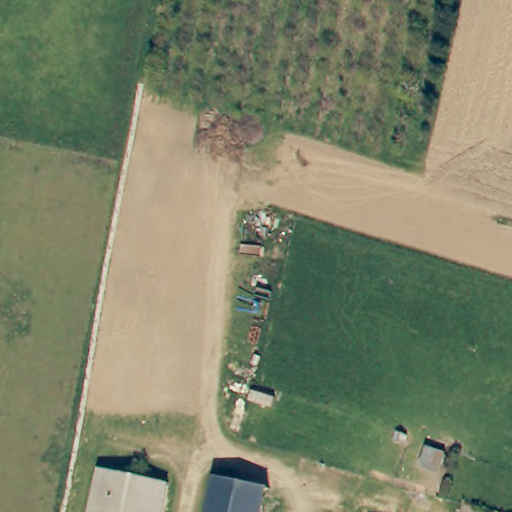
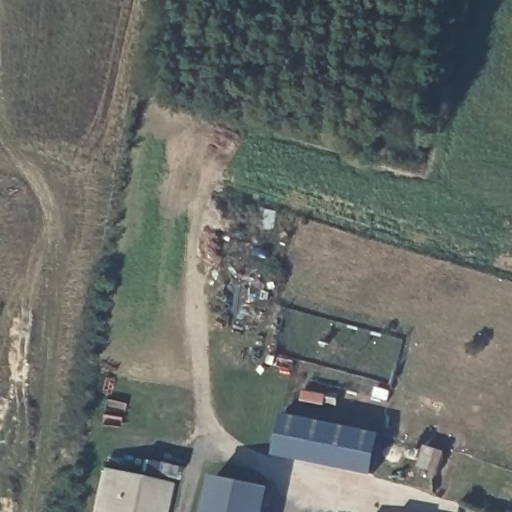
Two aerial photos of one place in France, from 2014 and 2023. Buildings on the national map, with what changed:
new [(373,475),(273,455),(283,414),(380,433),(373,475)]
unchanged [(166,480),(160,512),(89,512),(98,467),(166,480)]
unchanged [(267,512),(212,512),(217,478),(271,487),(267,512)]

